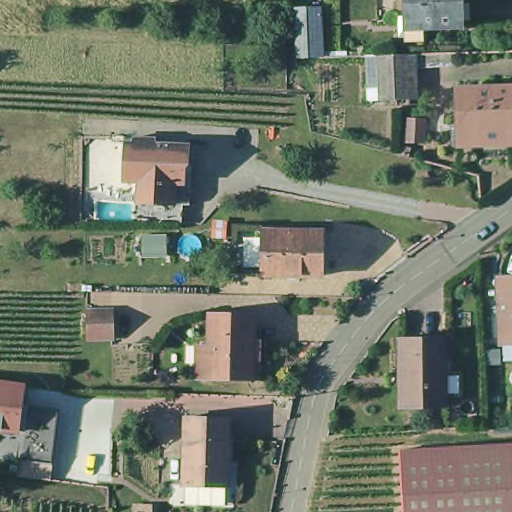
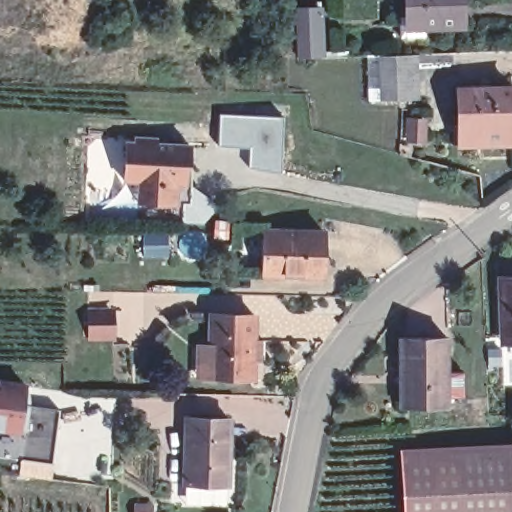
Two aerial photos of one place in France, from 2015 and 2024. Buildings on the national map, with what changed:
unchanged [(460,0),(461,28),(406,30),(405,0),(460,0)]
unchanged [(321,12),(324,61),(323,62),(302,62),(301,51),(300,13),(321,12)]
unchanged [(423,54),(424,98),(395,98),(393,55),(423,54)]
unchanged [(463,123),(462,89),(512,88),(512,143),(463,144),(455,144),(455,124),(463,123)]
new [(220,112),(284,114),(281,171),(248,168),(249,147),(219,146),(220,112)]
unchanged [(428,145),(404,146),(404,116),(426,115),(428,145)]
unchanged [(133,183),(119,182),(120,160),(124,160),(125,142),(129,142),(129,136),(149,137),(149,143),(183,144),(183,164),(178,170),(178,185),(171,185),(171,204),(142,203),(132,203),(132,193),(133,183)]
unchanged [(328,228),(327,269),(267,268),(267,228),(328,228)]
unchanged [(501,338),(498,277),(512,277),(512,342),(501,342),(501,338)]
unchanged [(204,349),(213,350),(214,318),(259,319),(257,381),(213,380),(203,380),(204,349)]
unchanged [(87,344),(87,321),(113,321),(113,344),(87,344)]
unchanged [(401,369),(401,333),(447,332),(449,400),(406,401),(405,369),(401,369)]
unchanged [(19,433),(0,431),(0,380),(24,383),(19,433)]
unchanged [(58,463),(26,459),(33,405),(65,409),(58,463)]
unchanged [(185,418),(228,418),(227,484),(185,484),(185,418)]
unchanged [(504,444),(512,443),(512,512),(508,512),(504,444)]
unchanged [(398,449),(504,444),(508,512),(401,512),(398,449)]

